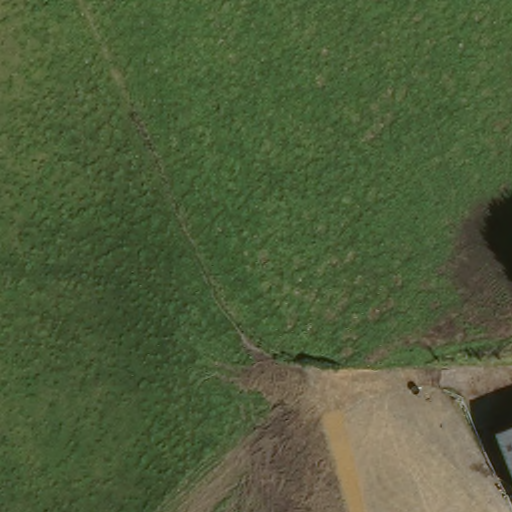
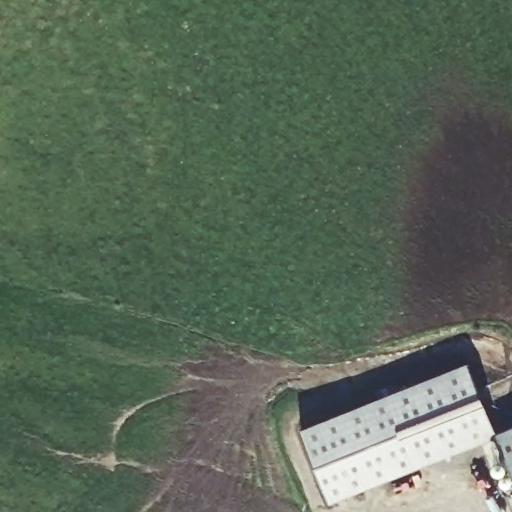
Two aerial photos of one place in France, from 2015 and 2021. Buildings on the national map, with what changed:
new [(496,436),(330,503),(301,429),(467,363),(496,436)]
unchanged [(512,428),(512,470),(498,433),(512,428)]

